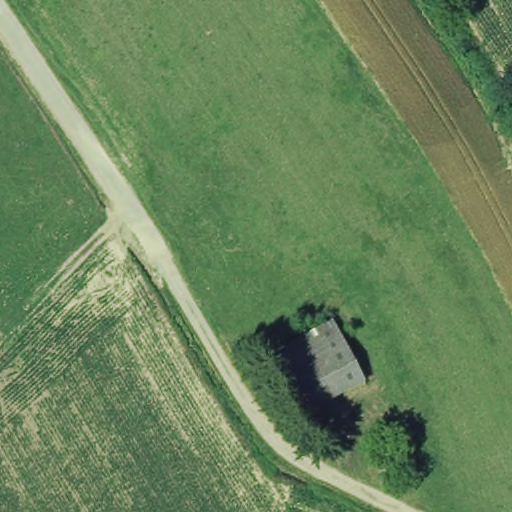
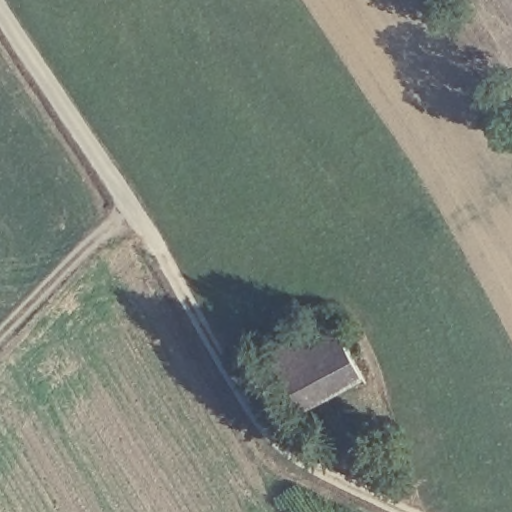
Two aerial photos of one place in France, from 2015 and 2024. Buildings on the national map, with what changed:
unchanged [(297,411),(265,352),(332,316),(365,375),(297,411)]

